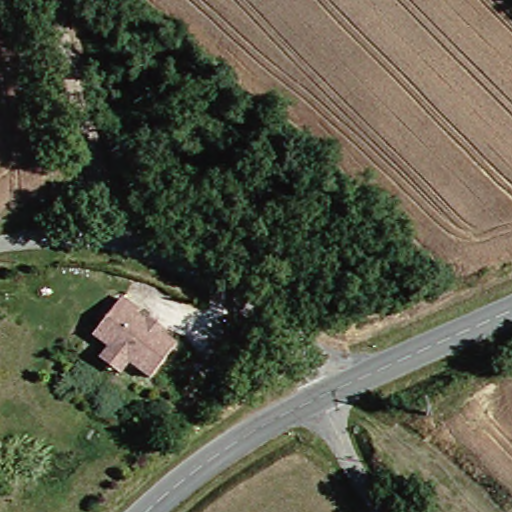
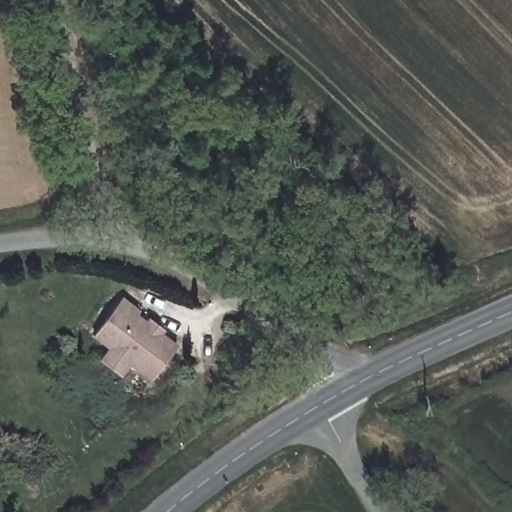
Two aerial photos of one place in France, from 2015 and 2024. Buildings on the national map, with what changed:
unchanged [(104,362),(114,349),(99,338),(127,301),(146,312),(142,317),(184,345),(156,380),(135,365),(126,376),(104,362)]

